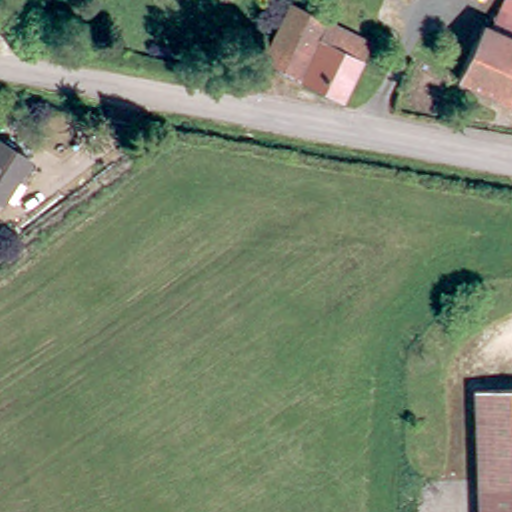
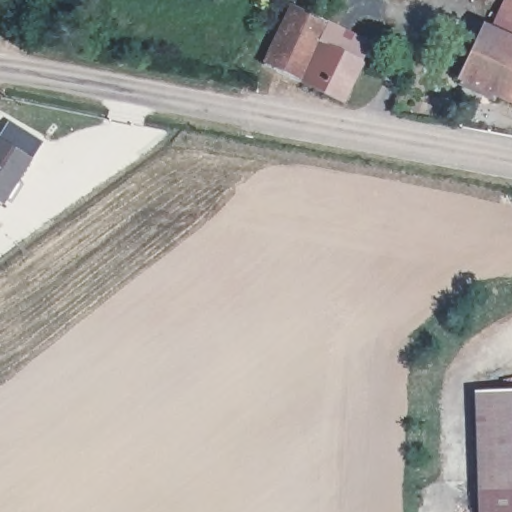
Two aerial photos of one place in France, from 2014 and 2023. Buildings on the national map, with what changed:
unchanged [(297,0),(332,17),(375,37),(367,56),(348,97),(270,62),(297,0)]
unchanged [(488,25),(499,0),(512,0),(512,99),(454,75),(477,20),(488,25)]
unchanged [(4,136),(35,152),(13,195),(4,191),(0,199),(0,144),(4,136)]
unchanged [(479,390),(512,389),(512,512),(483,512),(479,390)]

